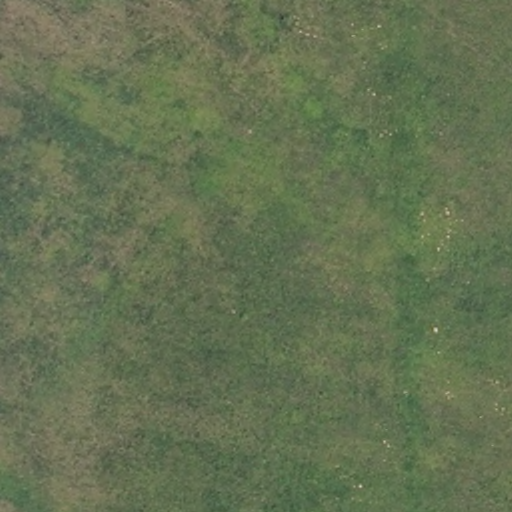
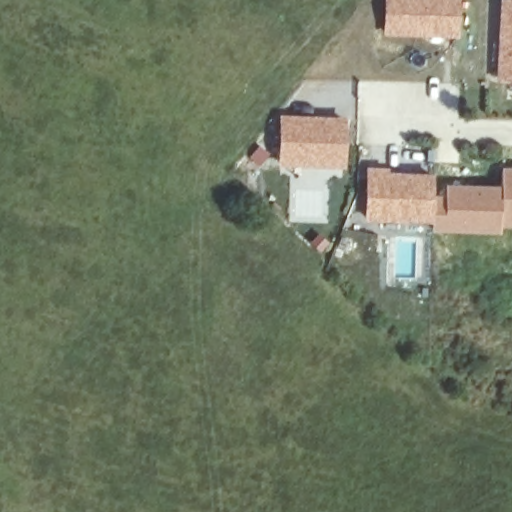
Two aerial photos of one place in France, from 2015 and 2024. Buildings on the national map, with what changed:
new [(462,0),(460,39),(381,34),(383,0),(462,0)]
new [(497,82),(501,0),(512,0),(512,82),(497,82)]
new [(347,117),(346,167),(281,167),(282,114),(347,117)]
new [(365,165),(436,173),(435,184),(431,224),(364,221),(365,165)]
new [(500,184),(501,166),(512,166),(512,227),(500,227),(500,184)]
new [(431,224),(435,184),(442,184),(443,182),(500,184),(500,227),(500,234),(431,232),(431,224)]

